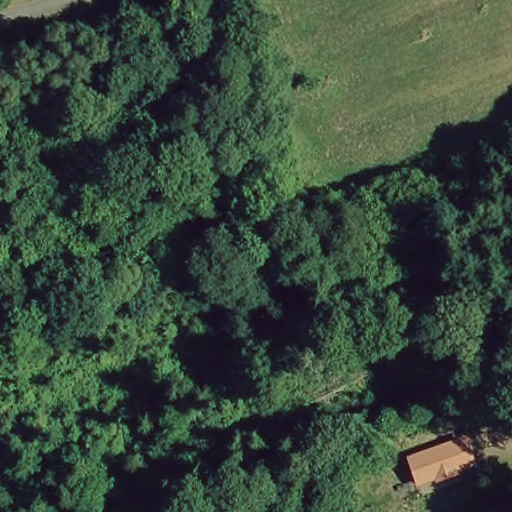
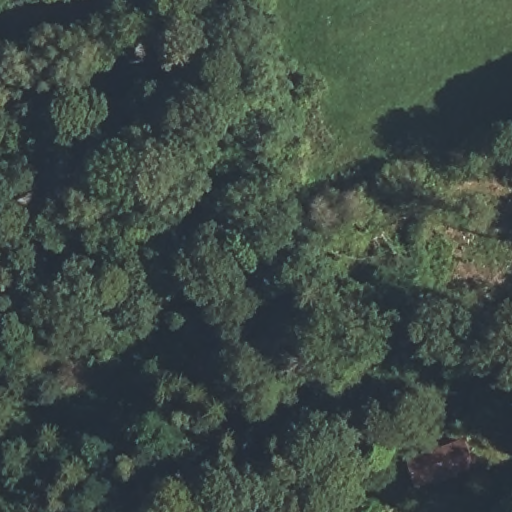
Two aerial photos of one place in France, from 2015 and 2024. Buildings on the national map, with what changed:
unchanged [(465,442),(470,459),(416,475),(410,460),(465,442)]

